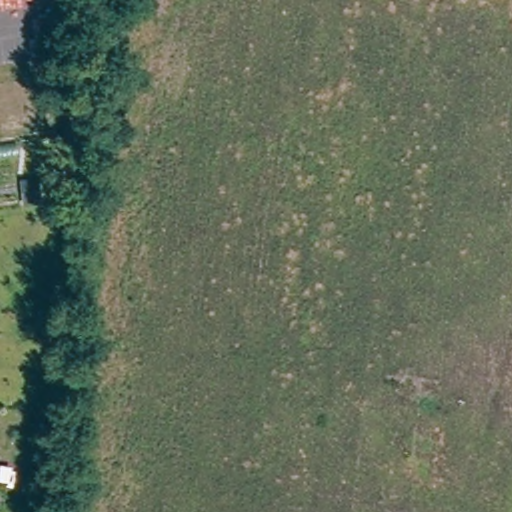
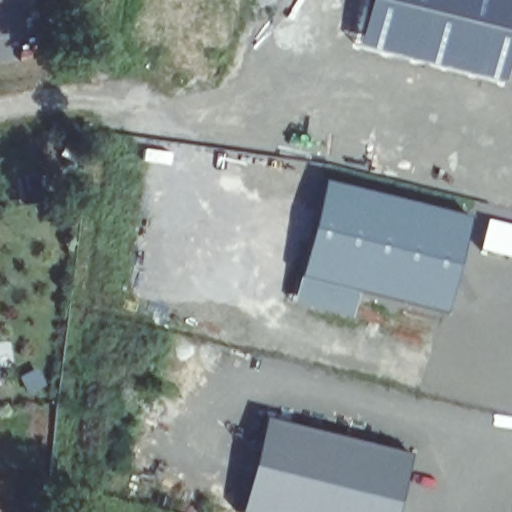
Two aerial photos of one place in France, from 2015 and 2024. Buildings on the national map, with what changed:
new [(512,43),(502,84),(356,46),(367,0),(512,0),(512,43)]
new [(321,179),(470,216),(448,312),(358,291),(351,320),(291,304),(321,179)]
new [(411,453),(396,512),(240,512),(263,415),(411,453)]

